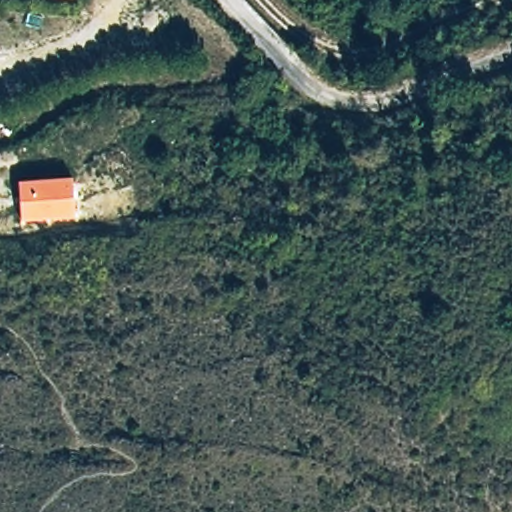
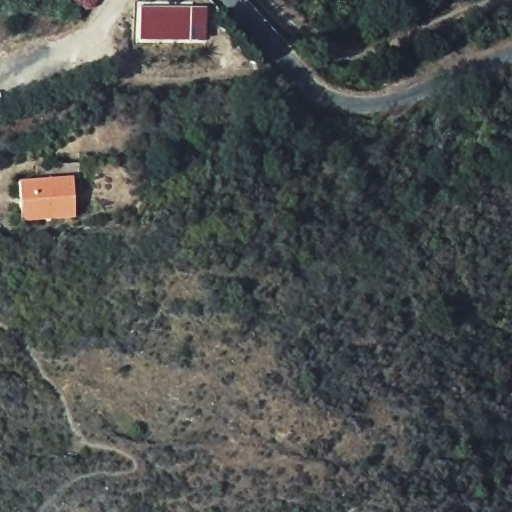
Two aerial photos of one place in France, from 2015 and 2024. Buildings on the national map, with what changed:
new [(206,39),(139,39),(140,6),(206,8),(206,39)]
unchanged [(71,180),(73,215),(20,219),(18,183),(71,180)]

